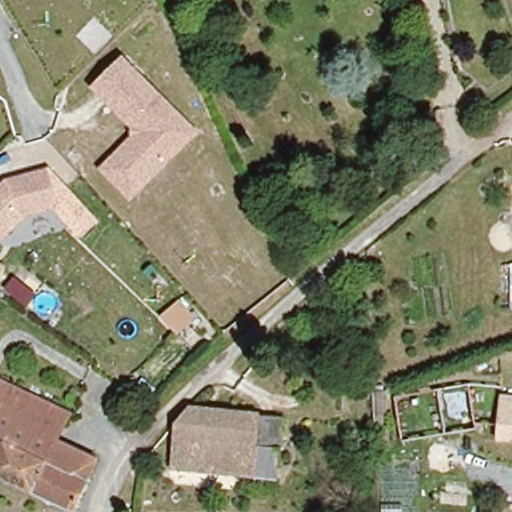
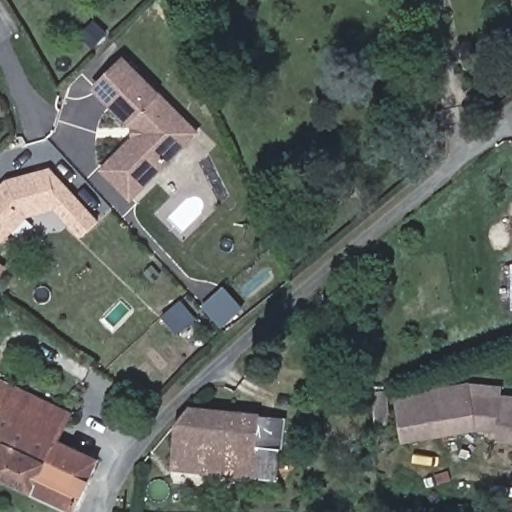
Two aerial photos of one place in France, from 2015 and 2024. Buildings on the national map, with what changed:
unchanged [(132,126),(92,88),(125,58),(201,134),(132,201),(100,169),(133,136),(132,126)]
unchanged [(60,208),(27,219),(4,244),(0,241),(0,186),(7,179),(50,169),(60,208)]
unchanged [(512,262),(512,311),(507,310),(508,262),(512,262)]
unchanged [(199,319),(180,337),(161,319),(180,300),(199,319)]
new [(500,437),(500,432),(478,431),(401,443),(399,430),(380,434),(371,384),(392,381),(395,394),(471,383),(503,386),(502,393),(512,394),(512,438),(500,437)]
unchanged [(59,440),(97,459),(74,511),(0,481),(0,382),(71,414),(59,440)]
demolished [(500,437),(502,393),(512,394),(512,438),(500,437)]
unchanged [(282,420),(276,479),(172,469),(175,423),(187,409),(282,420)]

